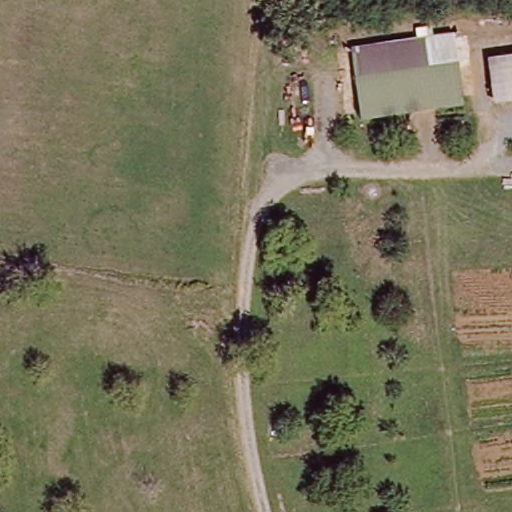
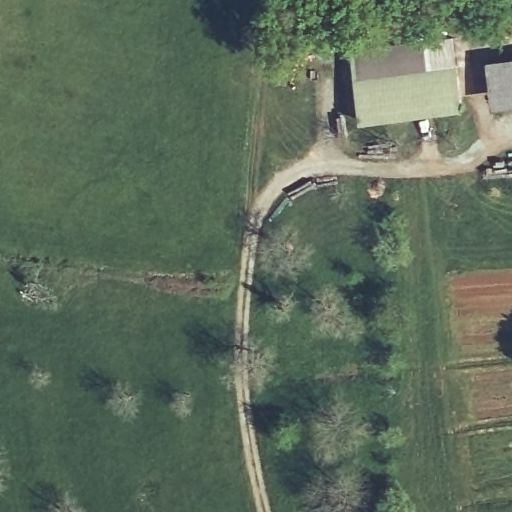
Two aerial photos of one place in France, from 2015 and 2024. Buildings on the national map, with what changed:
unchanged [(463,107),(358,120),(353,78),(350,46),(455,34),(457,65),(463,107)]
unchanged [(494,108),(488,60),(512,57),(512,106),(494,108)]

